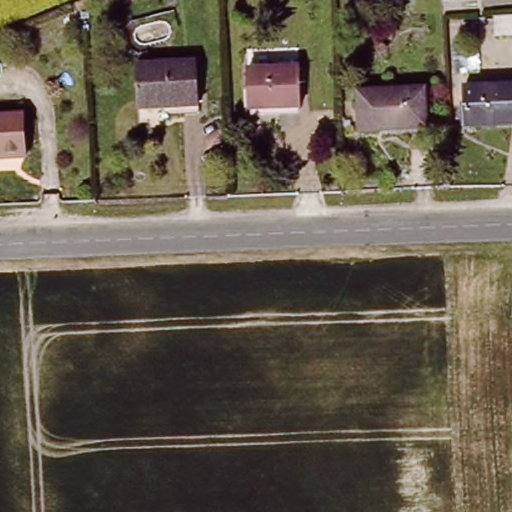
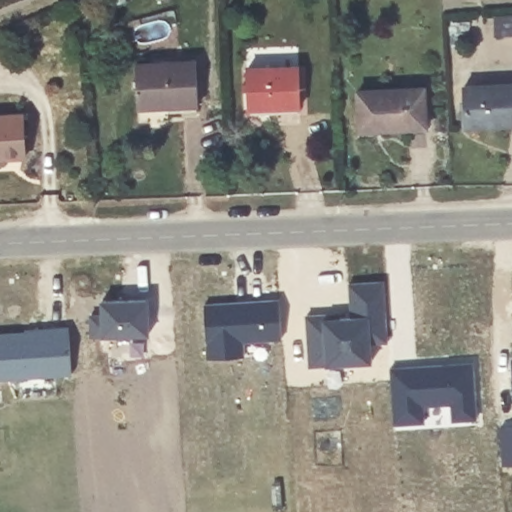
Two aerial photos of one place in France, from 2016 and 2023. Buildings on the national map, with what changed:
unchanged [(198,60),(199,111),(137,113),(136,62),(198,60)]
unchanged [(298,65),(300,106),(249,109),(248,67),(298,65)]
unchanged [(512,82),(512,124),(467,125),(466,83),(512,82)]
unchanged [(424,90),(426,133),(361,135),(360,93),(424,90)]
unchanged [(23,154),(0,155),(0,112),(20,110),(23,154)]
new [(349,313),(348,285),(383,282),(387,344),(369,345),(369,363),(308,367),(304,316),(349,313)]
new [(281,300),(284,335),(243,337),(244,356),(215,358),(211,304),(281,300)]
new [(103,318),(103,303),(148,305),(148,340),(90,338),(90,317),(103,318)]
new [(51,327),(68,326),(72,373),(0,378),(0,333),(51,330),(51,327)]
new [(474,364),(478,420),(454,422),(452,405),(424,407),(426,424),(395,425),(391,370),(474,364)]

